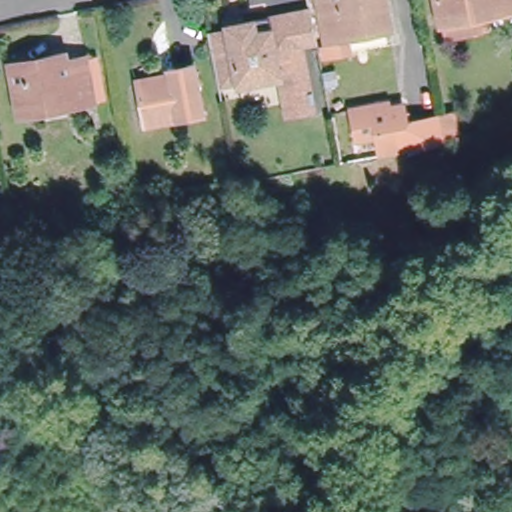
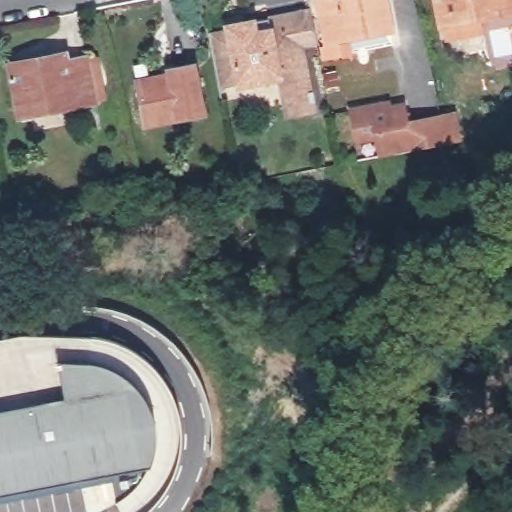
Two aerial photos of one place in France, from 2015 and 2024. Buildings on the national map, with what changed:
unchanged [(318,39),(321,37),(314,0),(379,0),(385,25),(342,34),(345,50),(322,54),(318,39)]
unchanged [(437,0),(512,0),(512,16),(442,29),(437,0)]
unchanged [(308,87),(311,96),(309,106),(283,110),(278,87),(275,70),(214,83),(204,31),(225,27),(224,24),(295,9),(305,6),(312,38),(300,41),(297,41),(305,81),(306,86),(308,87)]
unchanged [(22,115),(12,63),(65,52),(67,60),(87,56),(95,100),(76,105),(41,113),(22,115)]
unchanged [(204,118),(149,130),(141,92),(139,81),(167,75),(194,69),(204,118)]
unchanged [(423,150),(396,155),(392,135),(372,139),(367,109),(402,102),(403,105),(418,103),(421,122),(455,116),(456,121),(472,119),(477,139),(460,142),(423,150)]
new [(55,337),(59,362),(67,397),(0,410),(0,340),(23,335),(55,337)]
new [(99,363),(125,375),(142,393),(154,416),(157,436),(152,464),(0,493),(0,410),(67,397),(59,362),(99,363)]

